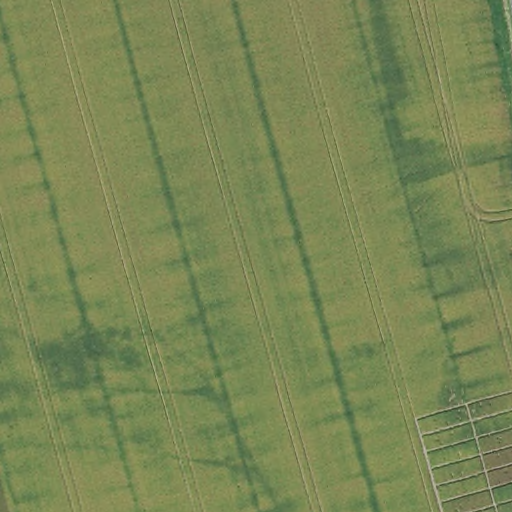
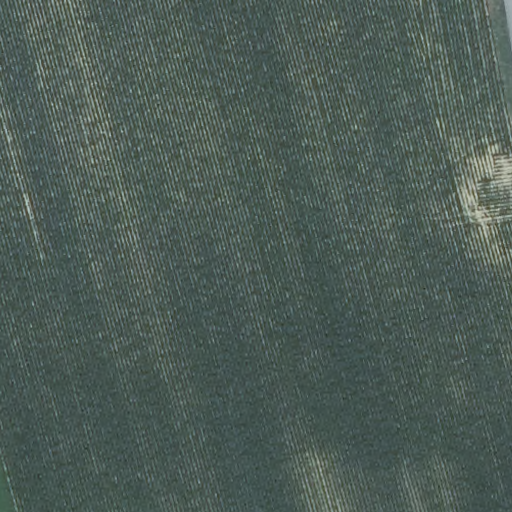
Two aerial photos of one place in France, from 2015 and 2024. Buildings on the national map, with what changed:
[]

